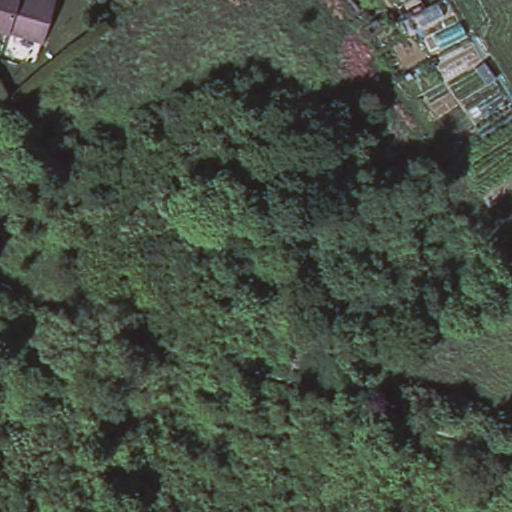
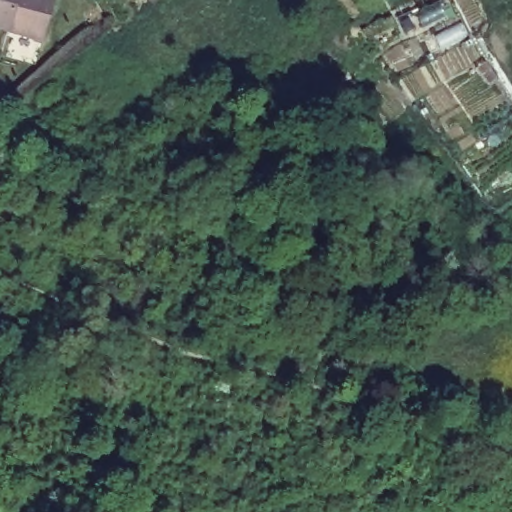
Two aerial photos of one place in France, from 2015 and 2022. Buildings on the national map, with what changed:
unchanged [(0,0),(53,0),(44,36),(0,25),(0,0)]

